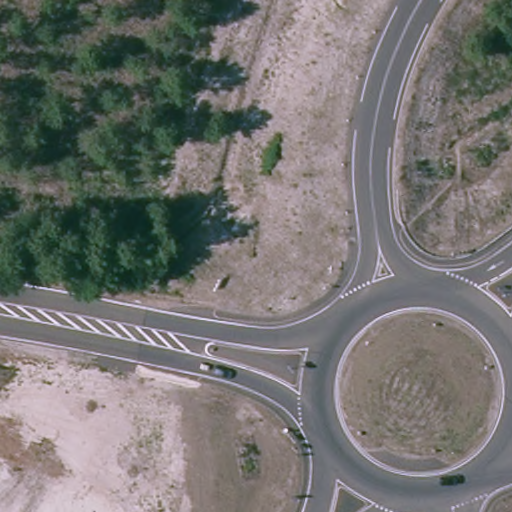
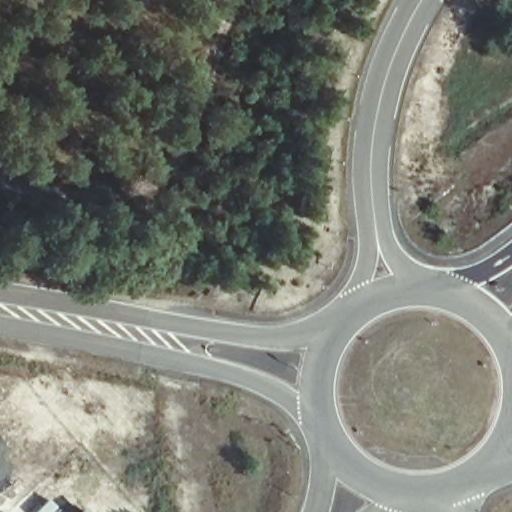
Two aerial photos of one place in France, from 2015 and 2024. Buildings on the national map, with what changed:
new [(49,498),(62,512),(33,512),(49,498)]
new [(85,507),(89,512),(78,512),(85,507)]

